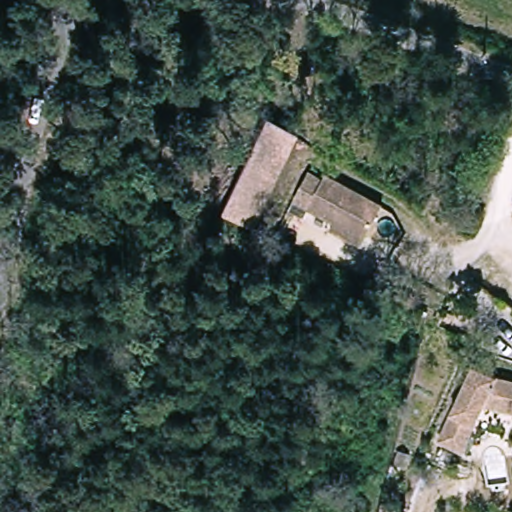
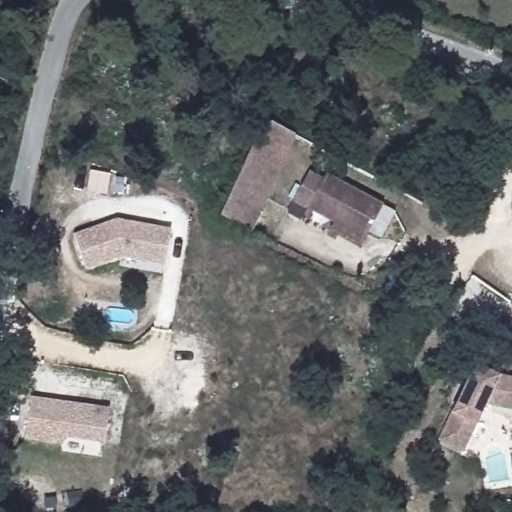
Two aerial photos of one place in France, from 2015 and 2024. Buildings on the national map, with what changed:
unchanged [(227,203),(238,177),(265,112),(301,132),(267,194),(255,218),(227,203)]
unchanged [(334,230),(339,221),(302,199),(318,172),(329,179),(332,173),(387,205),(370,237),(364,247),(334,230)]
new [(117,219),(172,229),(164,266),(120,257),(86,270),(72,236),(117,219)]
unchanged [(490,405),(467,453),(443,441),(478,367),(502,379),(512,382),(512,411),(490,405)]
new [(30,397),(110,407),(104,443),(65,438),(63,445),(25,440),(30,397)]

